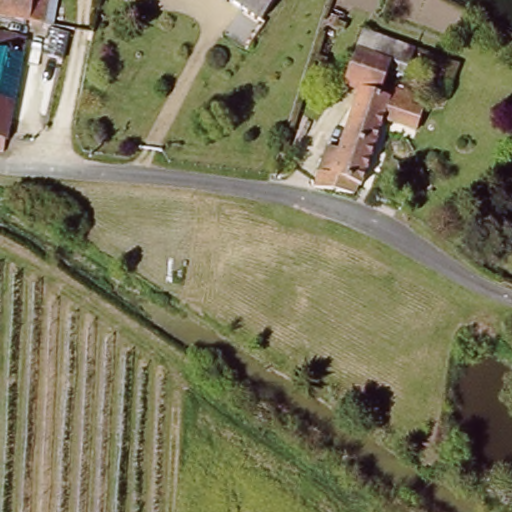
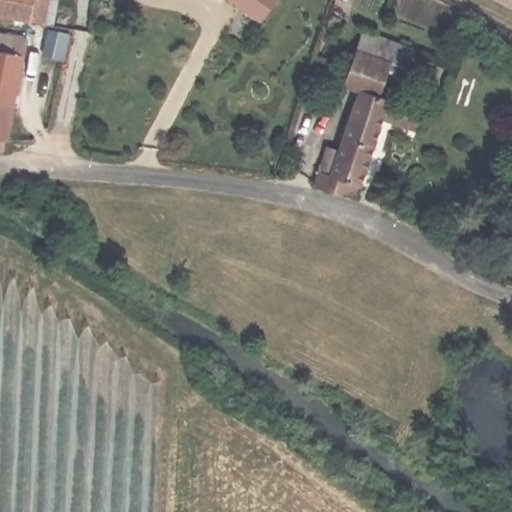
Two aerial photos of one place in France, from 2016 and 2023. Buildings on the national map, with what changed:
unchanged [(36,29),(0,21),(0,0),(42,0),(36,29)]
unchanged [(277,9),(274,7),(263,23),(262,22),(260,24),(229,0),(283,0),(277,9)]
unchanged [(307,189),(328,125),(340,129),(352,94),(335,87),(348,52),(362,57),(370,36),(407,52),(397,80),(380,74),(375,90),(407,101),(402,112),(415,117),(408,135),(377,123),(349,200),(307,189)]
unchanged [(2,159),(0,158),(0,49),(16,51),(2,159)]
unchanged [(410,156),(427,164),(417,189),(400,181),(410,156)]

